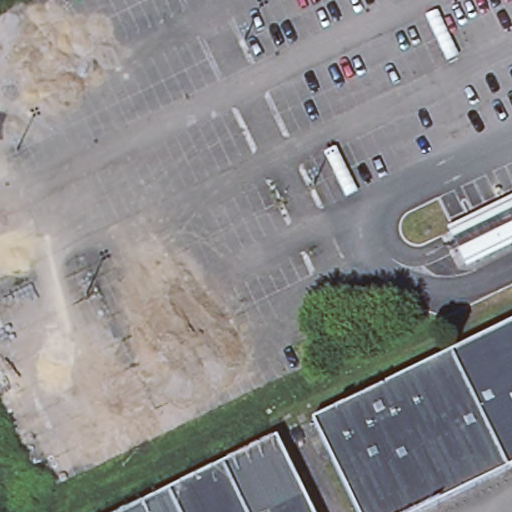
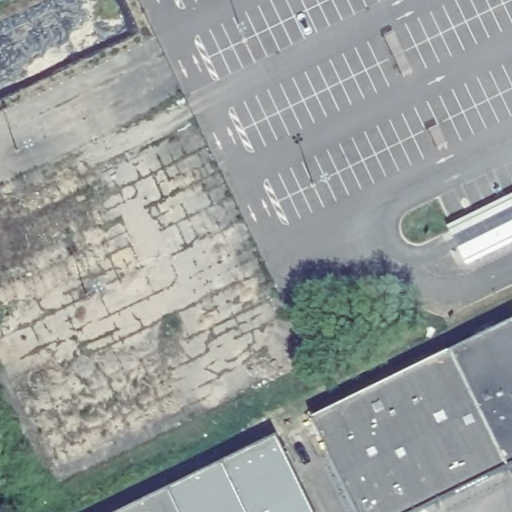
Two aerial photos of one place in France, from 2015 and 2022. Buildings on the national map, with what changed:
unchanged [(444,235),(512,202),(512,241),(459,267),(444,235)]
unchanged [(512,465),(460,491),(402,375),(512,322),(512,465)]
unchanged [(415,512),(356,512),(311,419),(402,375),(460,491),(415,512)]
unchanged [(311,512),(121,512),(275,437),(311,512)]

